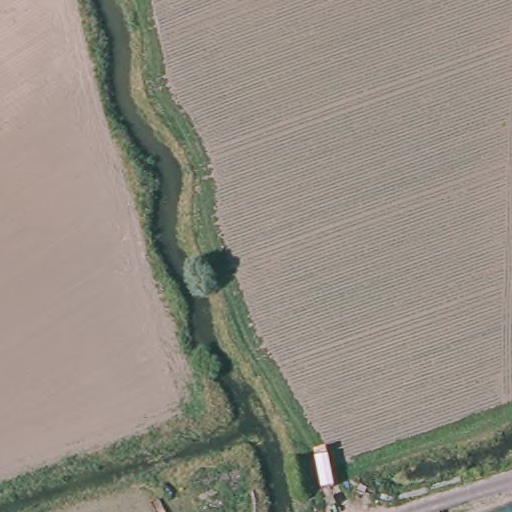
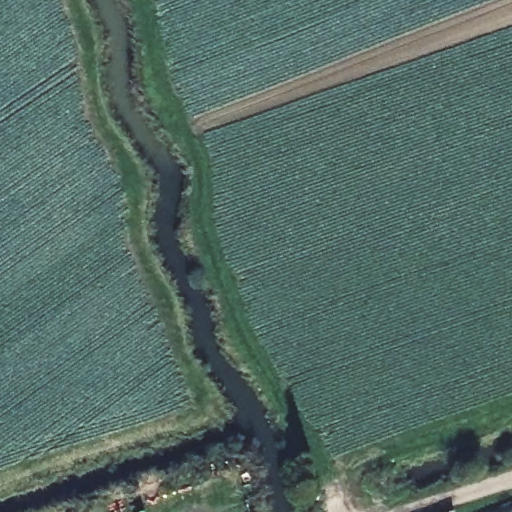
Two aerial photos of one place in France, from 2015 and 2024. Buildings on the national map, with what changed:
unchanged [(494,512),(512,505),(512,512),(494,512)]

